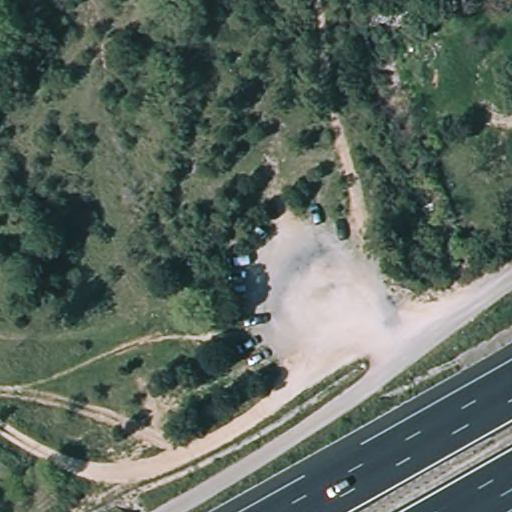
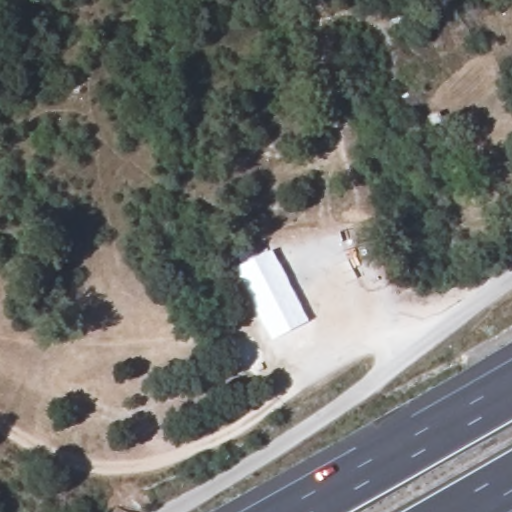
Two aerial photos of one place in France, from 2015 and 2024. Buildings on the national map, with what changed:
new [(273,340),(236,268),(273,251),(309,321),(273,340)]

